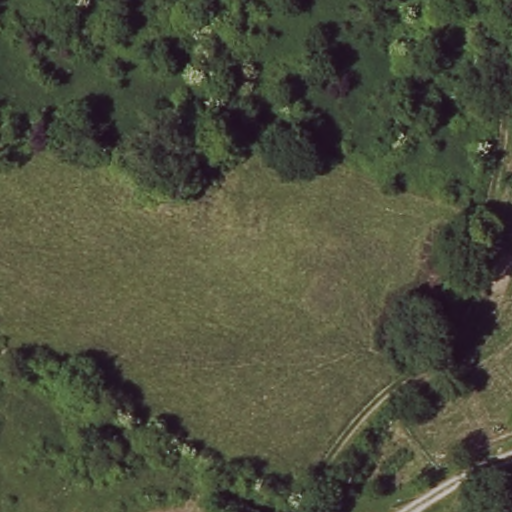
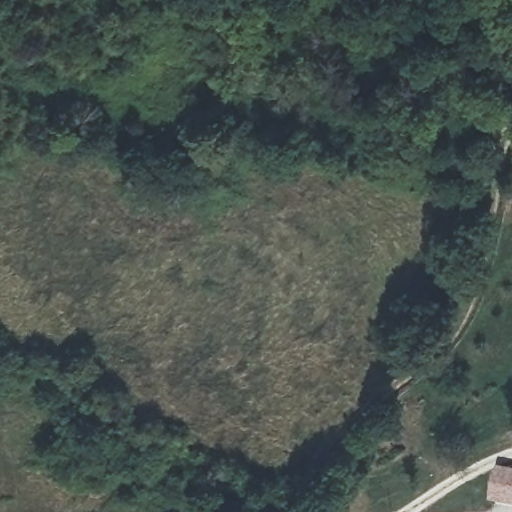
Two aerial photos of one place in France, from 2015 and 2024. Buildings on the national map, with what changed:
new [(491,502),(499,467),(512,470),(512,507),(491,502)]

